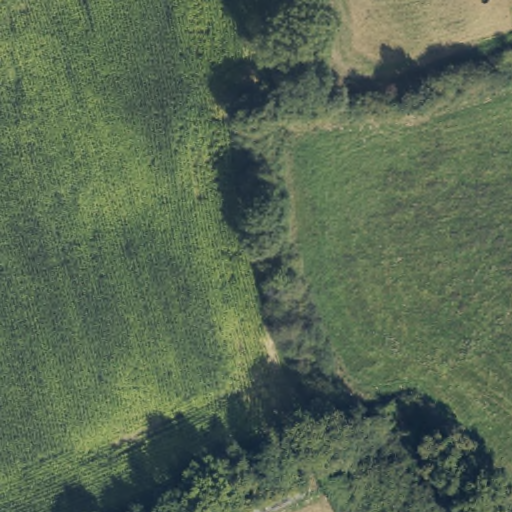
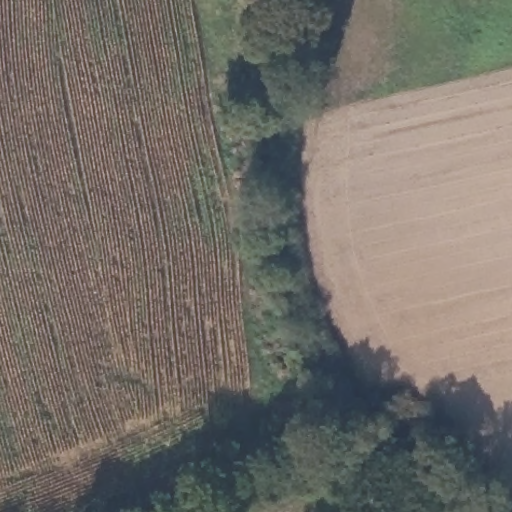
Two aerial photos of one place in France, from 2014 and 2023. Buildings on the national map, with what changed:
[]

